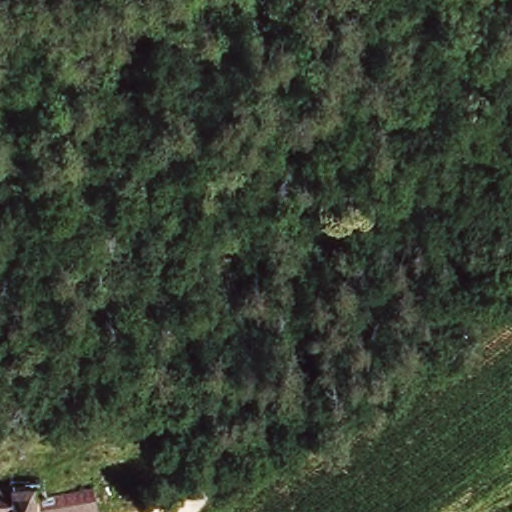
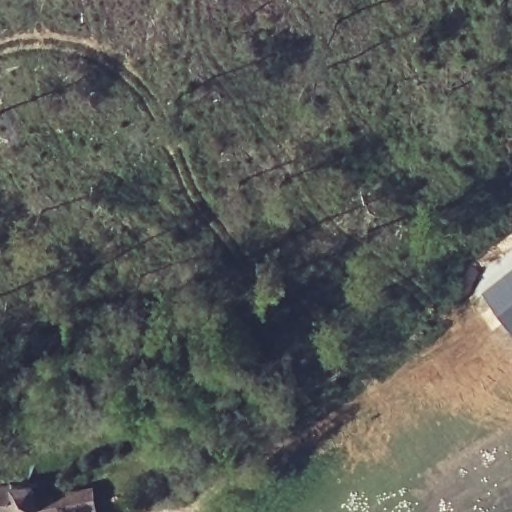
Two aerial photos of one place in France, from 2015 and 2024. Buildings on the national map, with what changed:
new [(512,267),(512,330),(480,292),(512,267)]
unchanged [(16,512),(0,512),(0,490),(25,485),(28,496),(81,489),(86,512),(30,512),(30,510),(16,512)]

